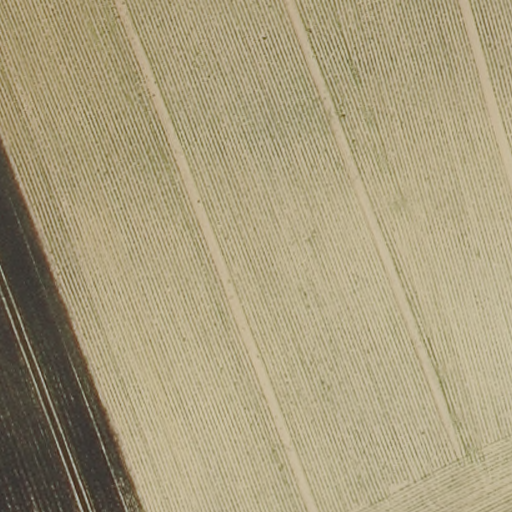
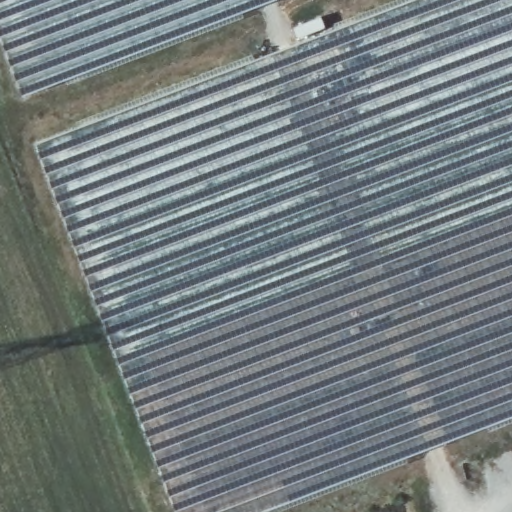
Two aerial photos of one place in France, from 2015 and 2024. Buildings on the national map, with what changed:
new [(0,42),(0,0),(281,0),(22,99),(0,42)]
new [(512,0),(512,419),(267,512),(173,512),(34,146),(411,0),(512,0)]

